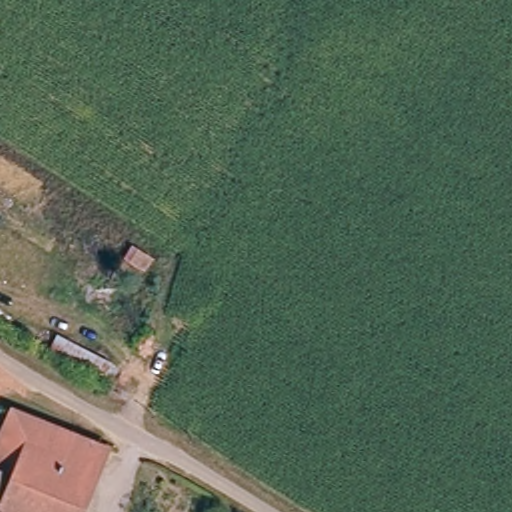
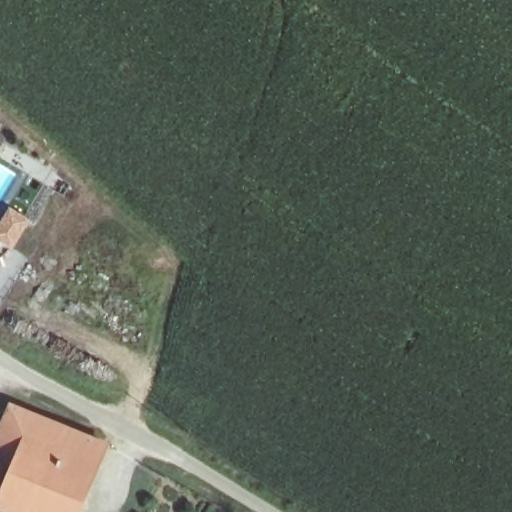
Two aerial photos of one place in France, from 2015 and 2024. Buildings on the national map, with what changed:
new [(29,220),(11,248),(0,241),(0,219),(7,207),(29,220)]
unchanged [(0,487),(10,468),(0,463),(0,431),(12,406),(75,437),(78,432),(97,440),(93,447),(106,455),(78,512),(10,512),(0,507),(0,487)]
unchanged [(0,487),(0,463),(10,468),(0,487)]

